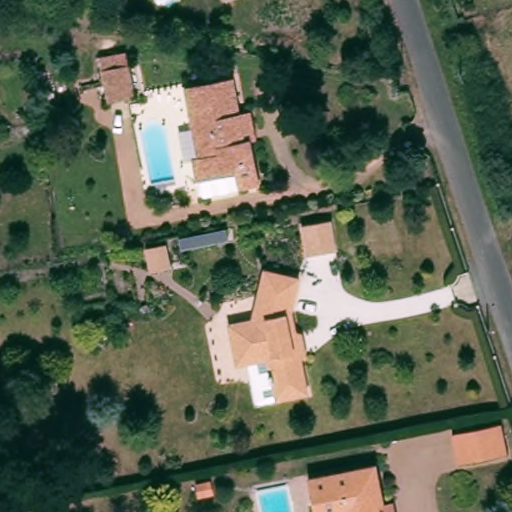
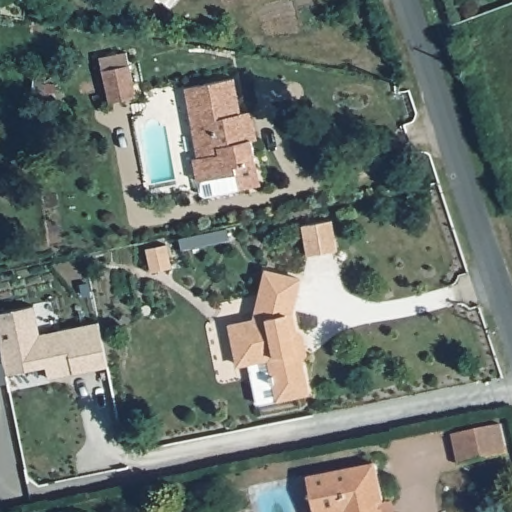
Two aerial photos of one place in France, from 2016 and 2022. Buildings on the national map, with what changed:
unchanged [(136,97),(110,102),(100,58),(126,52),(136,97)]
unchanged [(261,185),(204,196),(200,193),(197,181),(193,158),(199,157),(185,87),(234,77),(241,114),(252,112),(257,139),(252,140),(256,162),(261,185)]
unchanged [(166,242),(171,267),(151,271),(147,246),(166,242)]
unchanged [(305,354),(301,358),(308,392),(277,400),(269,358),(238,365),(230,325),(254,320),(265,270),(300,278),(292,312),(296,331),(301,333),(305,354)]
new [(49,377),(46,366),(5,372),(0,345),(0,311),(35,303),(40,332),(99,321),(109,365),(75,372),(49,377)]
new [(7,382),(0,383),(0,344),(7,382)]
unchanged [(501,428),(507,458),(458,468),(452,438),(501,428)]
unchanged [(376,463),(384,502),(392,501),(394,512),(316,512),(309,477),(376,463)]

